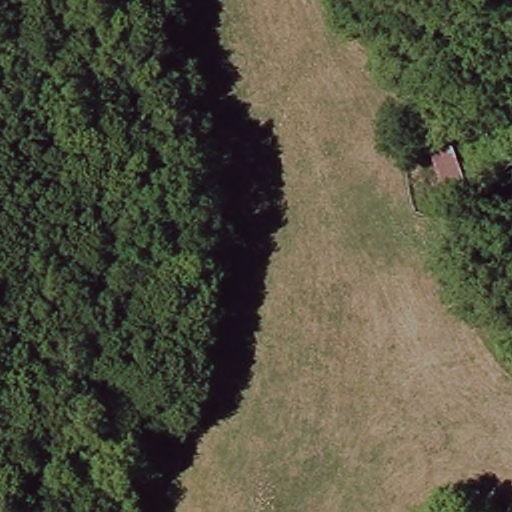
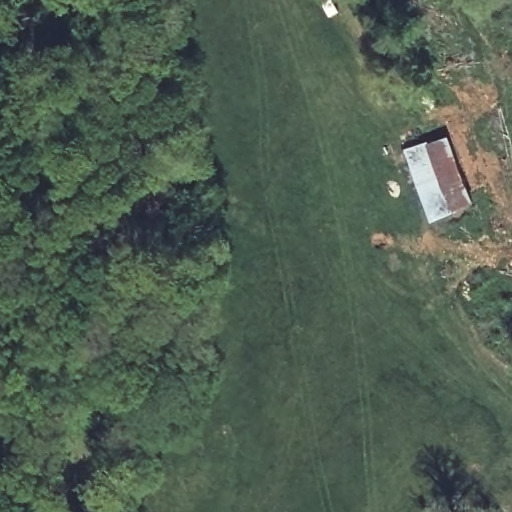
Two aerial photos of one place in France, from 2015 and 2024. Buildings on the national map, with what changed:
new [(447,135),(472,205),(429,222),(403,149),(447,135)]

